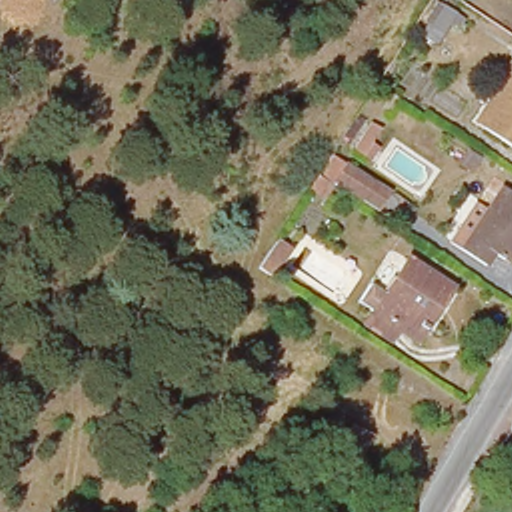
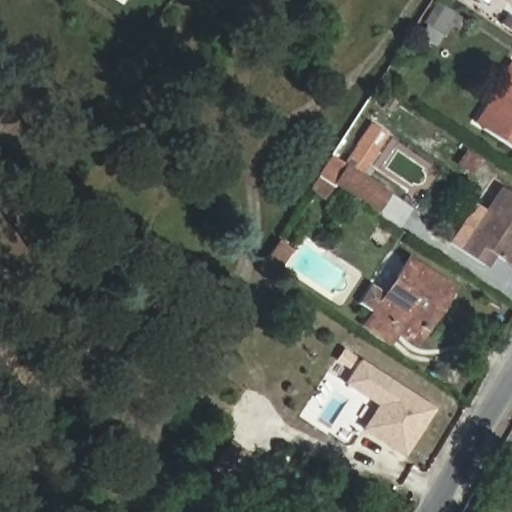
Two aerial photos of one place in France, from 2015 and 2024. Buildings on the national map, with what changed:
new [(508,2),(505,0),(509,0),(508,2)]
unchanged [(449,12),(460,20),(447,40),(435,33),(449,12)]
unchanged [(475,119),(510,56),(512,58),(512,140),(475,119)]
unchanged [(373,130),(382,136),(366,161),(357,155),(373,130)]
unchanged [(378,209),(337,184),(327,197),(308,184),(332,151),(395,188),(378,209)]
unchanged [(469,229),(501,179),(512,186),(512,240),(503,252),(494,246),(485,259),(436,228),(445,213),(469,229)]
unchanged [(261,274),(280,246),(292,255),(273,282),(261,274)]
unchanged [(427,323),(420,335),(362,294),(373,278),(389,288),(412,253),(455,281),(442,300),(427,323)]
new [(360,428),(376,405),(342,382),(360,357),(436,407),(404,456),(360,428)]
demolished [(342,458),(350,440),(371,450),(361,470),(354,486),(332,479),(342,458)]

